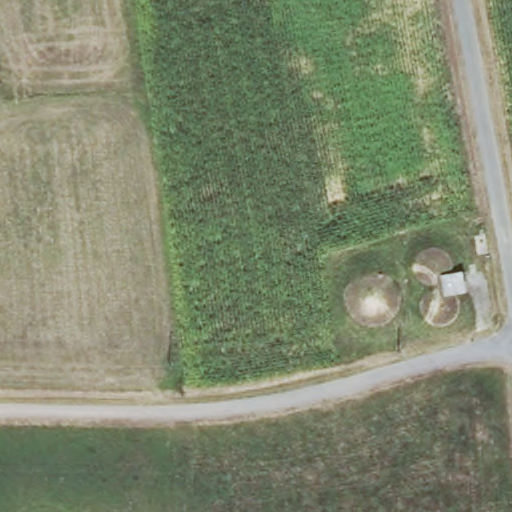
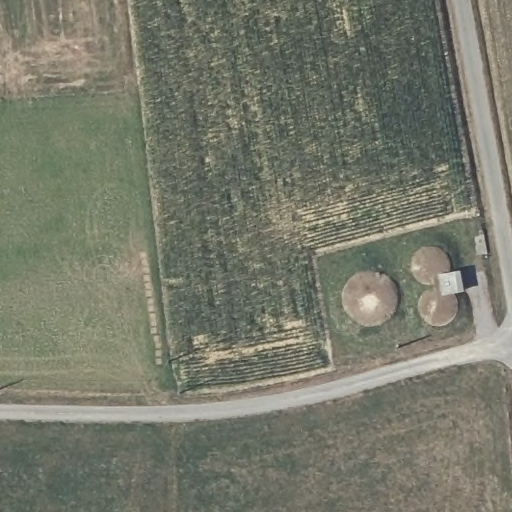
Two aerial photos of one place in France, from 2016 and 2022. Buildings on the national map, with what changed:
[]

